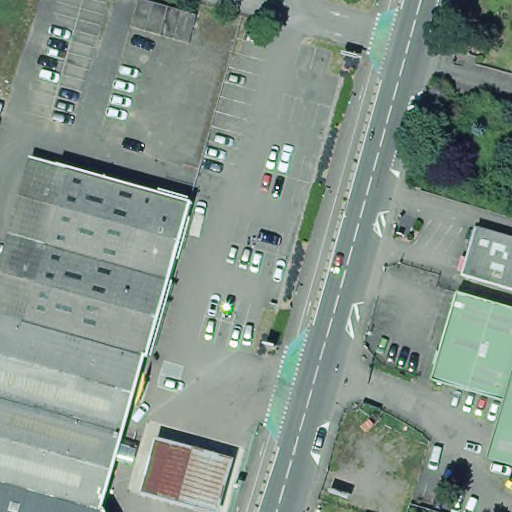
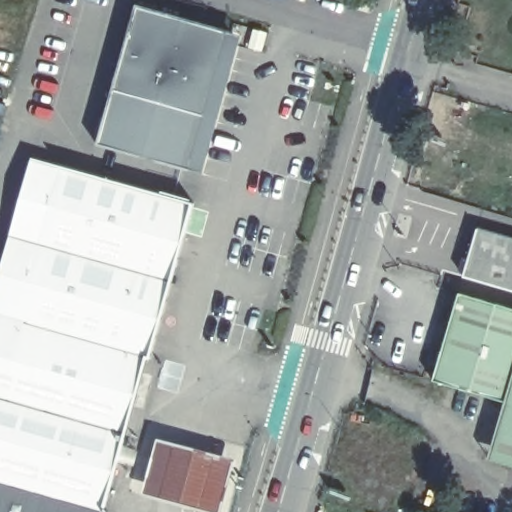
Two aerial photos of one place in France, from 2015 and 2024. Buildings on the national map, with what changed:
demolished [(192,44),(136,27),(142,0),(145,0),(198,17),(192,44)]
new [(242,35),(203,173),(190,169),(98,144),(137,5),(229,31),(242,35)]
unchanged [(192,204),(150,359),(146,359),(105,510),(106,512),(0,512),(0,282),(34,158),(192,204)]
unchanged [(470,277),(484,229),(512,237),(512,289),(490,283),(470,277)]
unchanged [(503,431),(510,404),(478,395),(441,384),(442,381),(466,296),(503,308),(504,304),(512,306),(512,465),(495,459),(503,431)]
unchanged [(235,459),(220,509),(142,489),(146,472),(127,467),(130,450),(152,453),(156,438),(235,459)]

